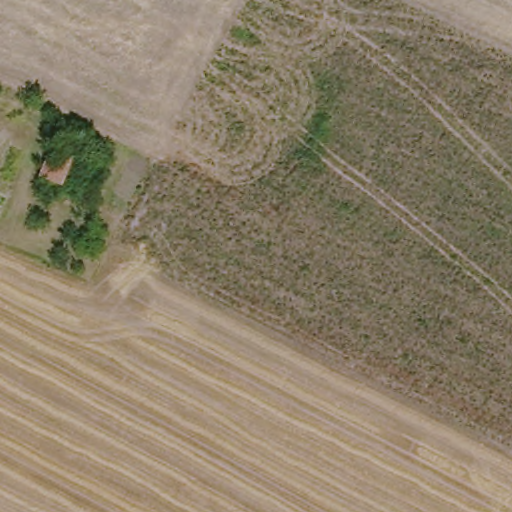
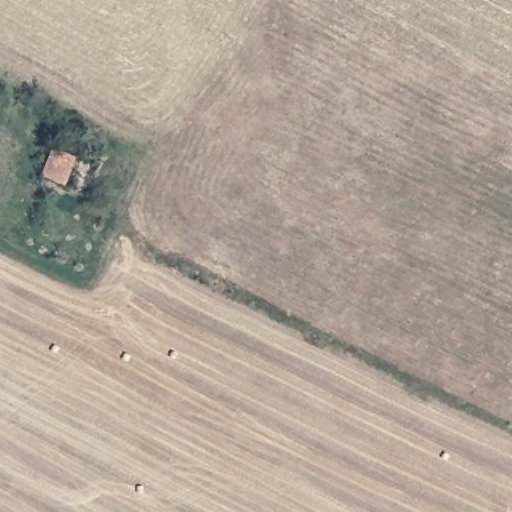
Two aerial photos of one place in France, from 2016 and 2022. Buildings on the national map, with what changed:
unchanged [(46,180),(56,156),(60,158),(65,147),(79,154),(76,165),(66,190),(46,180)]

